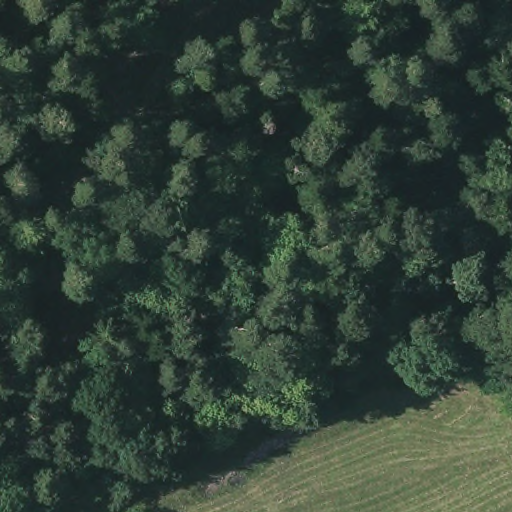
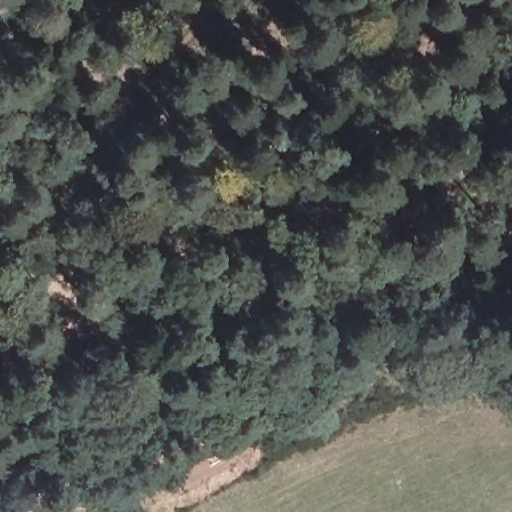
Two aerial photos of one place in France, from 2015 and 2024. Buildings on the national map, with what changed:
[]

